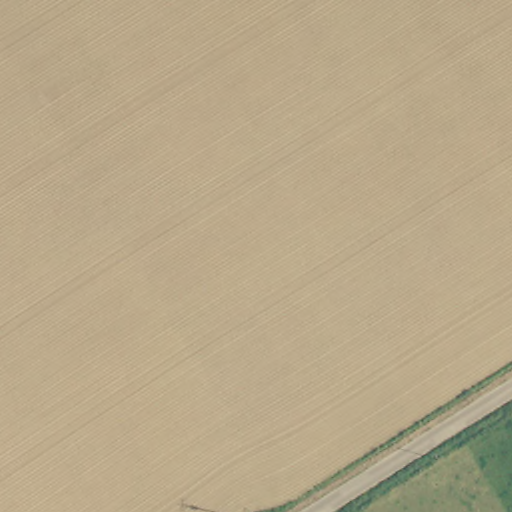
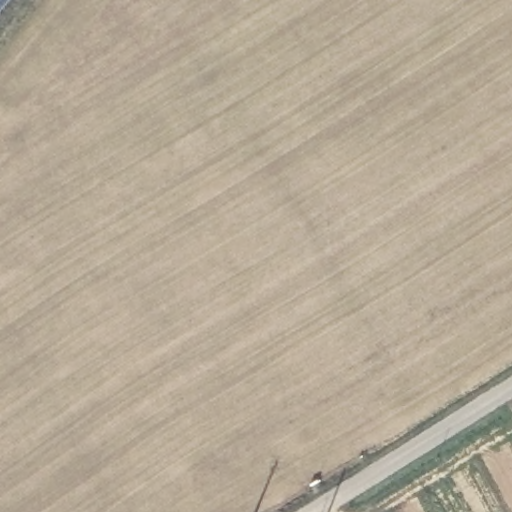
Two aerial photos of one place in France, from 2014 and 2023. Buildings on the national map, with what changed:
new [(0,0),(10,0),(0,12),(0,0)]

